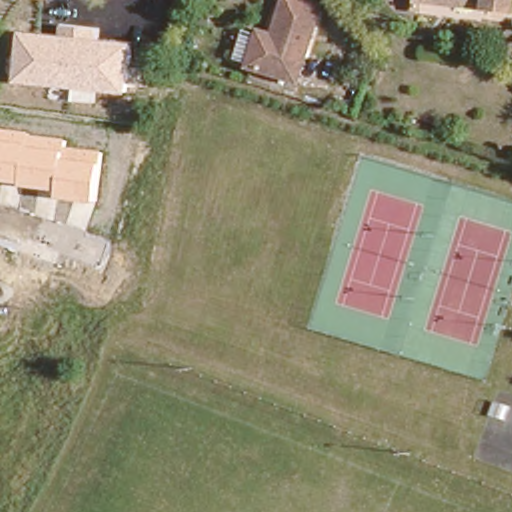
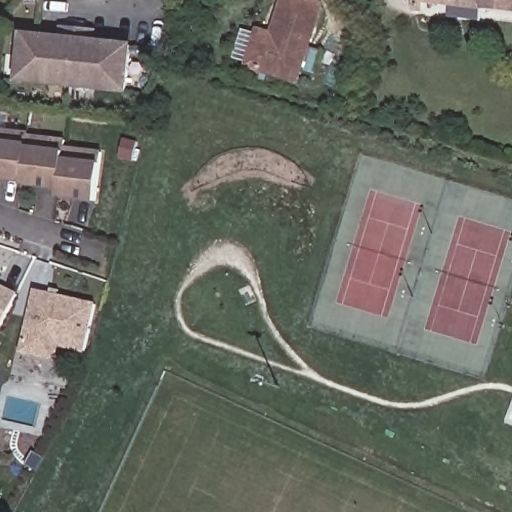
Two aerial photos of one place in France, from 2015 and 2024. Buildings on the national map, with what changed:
demolished [(152,0),(170,0),(168,9),(150,5),(152,0)]
unchanged [(272,85),(276,69),(247,60),(257,25),(270,28),(280,0),(324,0),(318,17),(299,77),(294,92),(272,85)]
unchanged [(510,4),(479,3),(479,0),(511,0),(510,4)]
unchanged [(130,93),(14,83),(20,32),(61,35),(62,24),(96,27),(96,41),(137,45),(130,93)]
demolished [(154,66),(134,62),(136,51),(156,55),(154,66)]
unchanged [(106,169),(100,168),(96,203),(58,199),(59,190),(20,187),(20,183),(0,182),(0,126),(34,130),(34,132),(71,136),(71,146),(106,152),(106,169)]
new [(18,293),(0,330),(0,284),(18,293)]
new [(84,354),(59,348),(56,362),(19,353),(33,289),(96,303),(84,354)]

